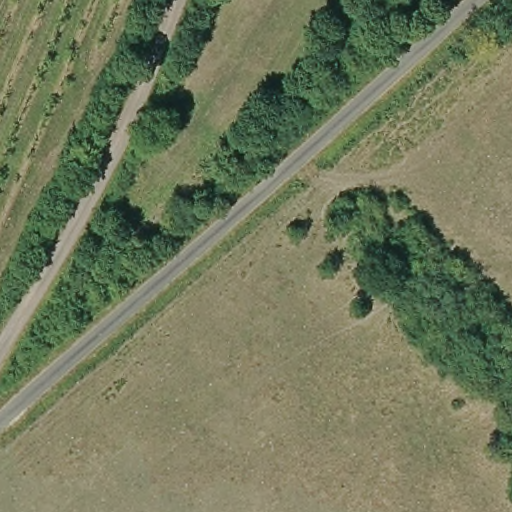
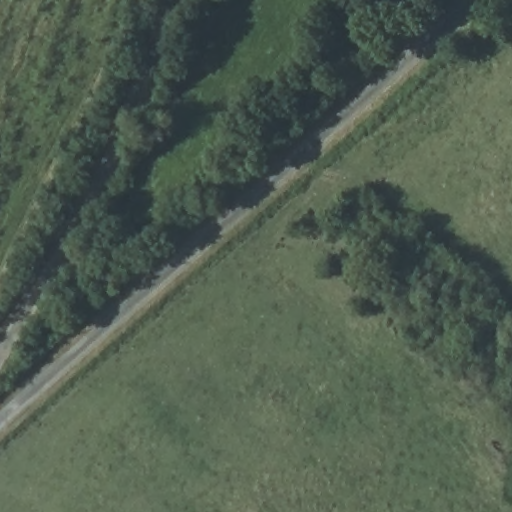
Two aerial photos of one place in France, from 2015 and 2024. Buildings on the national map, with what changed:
[]

